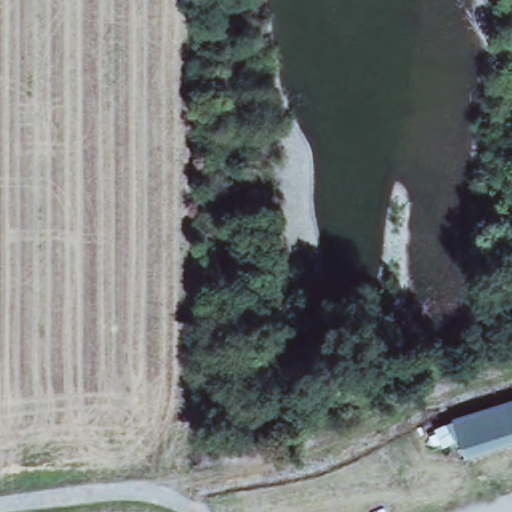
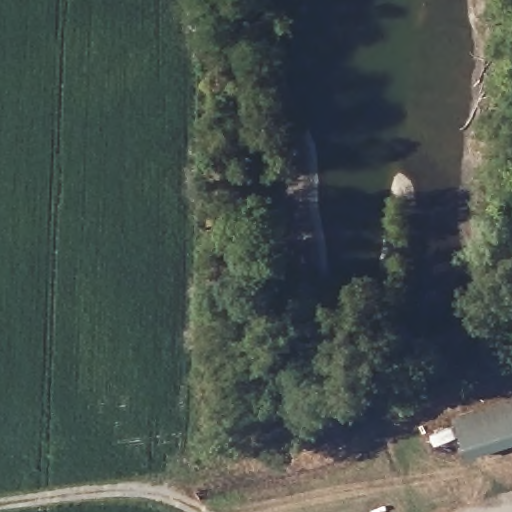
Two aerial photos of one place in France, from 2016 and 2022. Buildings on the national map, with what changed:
unchanged [(416,436),(452,421),(512,400),(512,441),(466,456),(460,441),(424,452),(416,436)]

